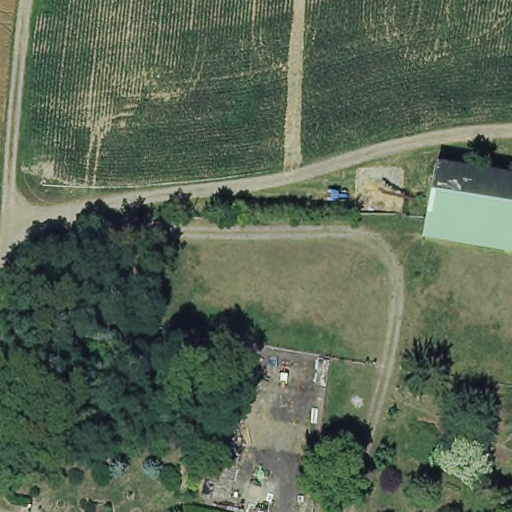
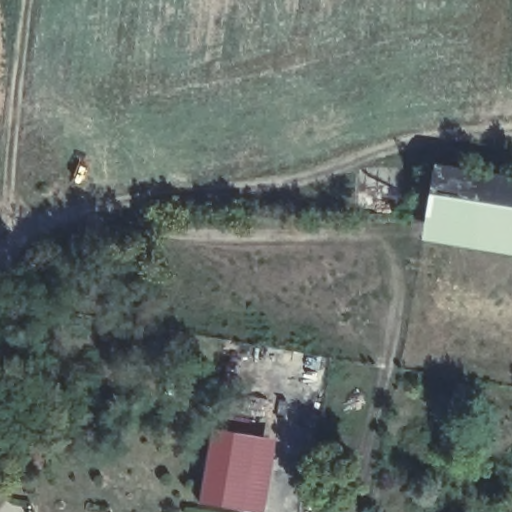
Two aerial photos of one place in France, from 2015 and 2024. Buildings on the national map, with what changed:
unchanged [(432,167),(512,180),(512,239),(422,225),(432,167)]
new [(264,512),(232,512),(197,507),(210,431),(273,442),(264,512)]

